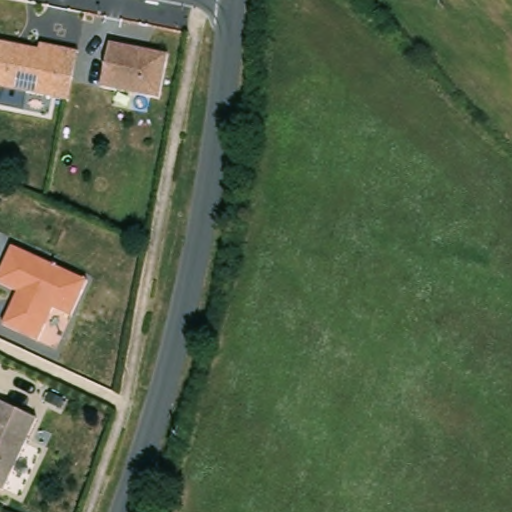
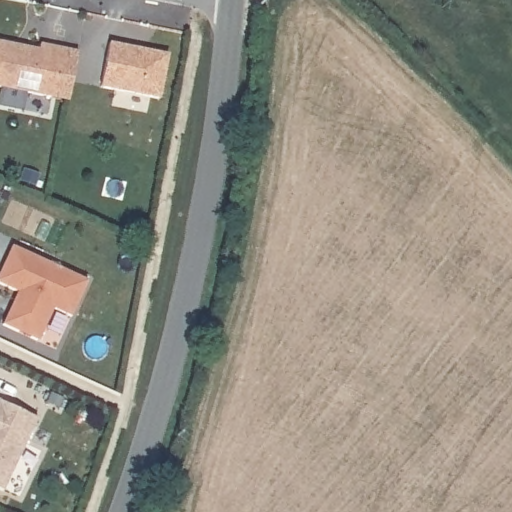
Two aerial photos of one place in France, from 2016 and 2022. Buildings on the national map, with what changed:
unchanged [(171,52),(164,96),(103,83),(110,39),(171,52)]
unchanged [(60,46),(51,95),(0,85),(0,40),(38,47),(39,42),(60,46)]
unchanged [(26,267),(4,257),(21,221),(96,256),(80,292),(62,283),(47,316),(11,300),(26,267)]
unchanged [(36,418),(2,490),(0,490),(0,401),(36,418)]

